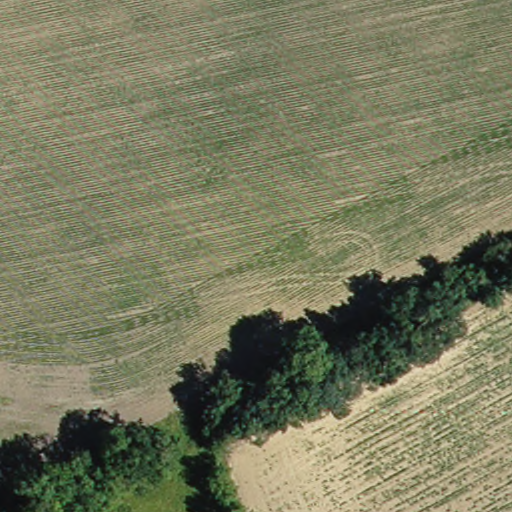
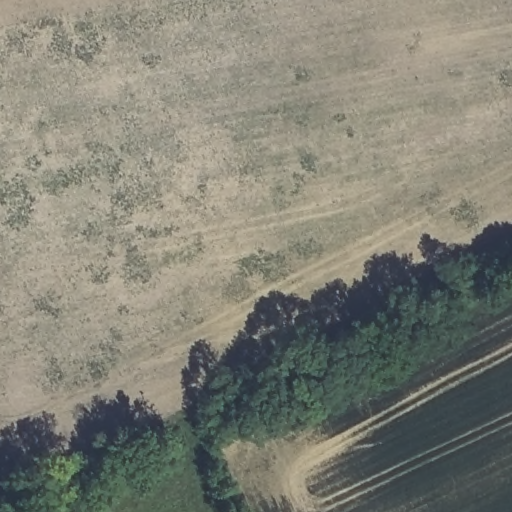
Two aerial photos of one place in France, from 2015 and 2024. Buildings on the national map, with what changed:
[]

